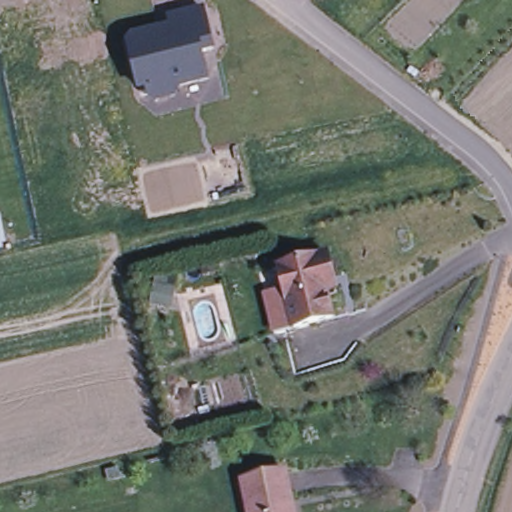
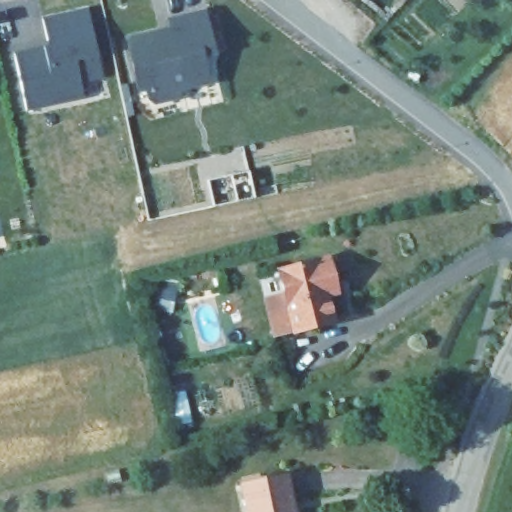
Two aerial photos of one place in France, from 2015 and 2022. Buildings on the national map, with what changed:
new [(47,45),(42,17),(87,7),(102,79),(80,84),(83,99),(25,110),(14,52),(47,45)]
unchanged [(129,35),(172,29),(170,20),(202,14),(213,50),(202,53),(207,83),(177,92),(177,99),(159,103),(141,86),(129,35)]
unchanged [(323,258),(328,257),(337,291),(327,294),(333,320),(334,320),(295,330),(295,328),(280,269),(323,258)]
new [(285,291),(295,330),(272,337),(262,297),(285,291)]
unchanged [(286,473),(294,512),(249,512),(243,482),(286,473)]

